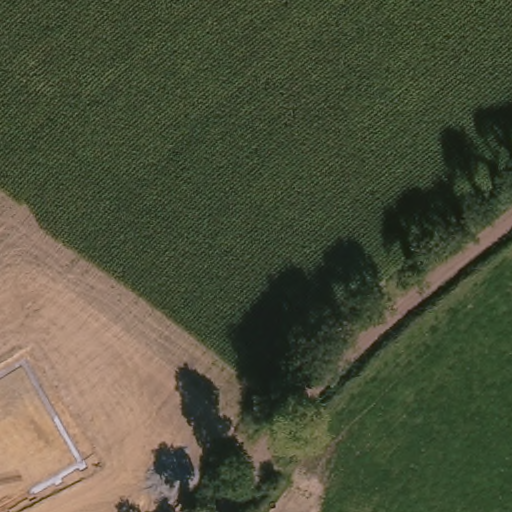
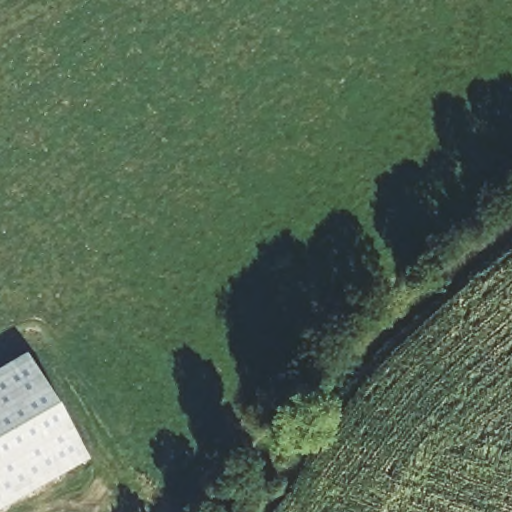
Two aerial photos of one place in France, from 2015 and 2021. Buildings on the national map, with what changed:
new [(25,356),(87,463),(2,512),(0,512),(0,371),(25,356)]

